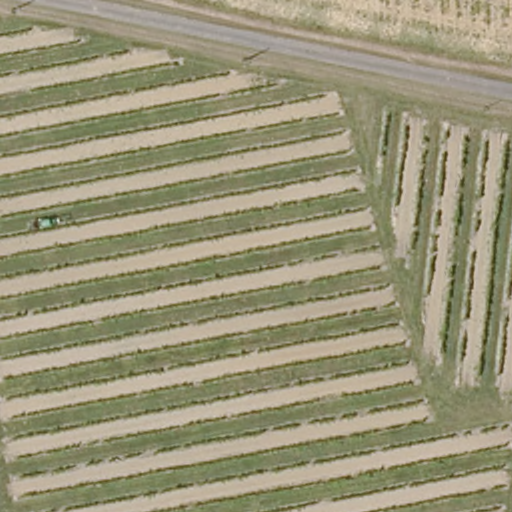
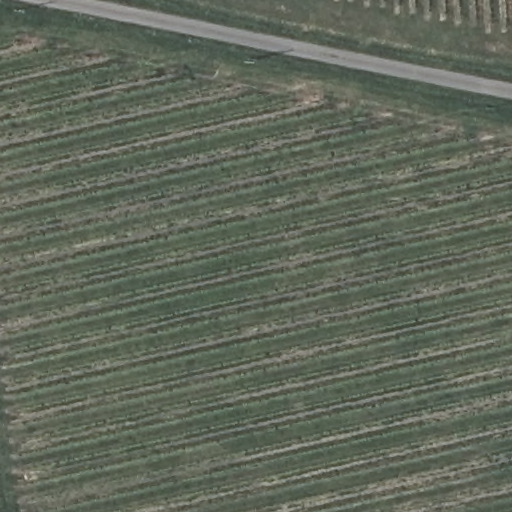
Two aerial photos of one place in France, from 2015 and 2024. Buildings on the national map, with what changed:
[]

